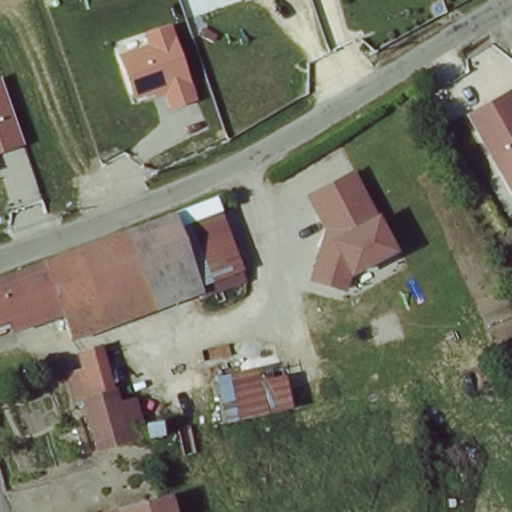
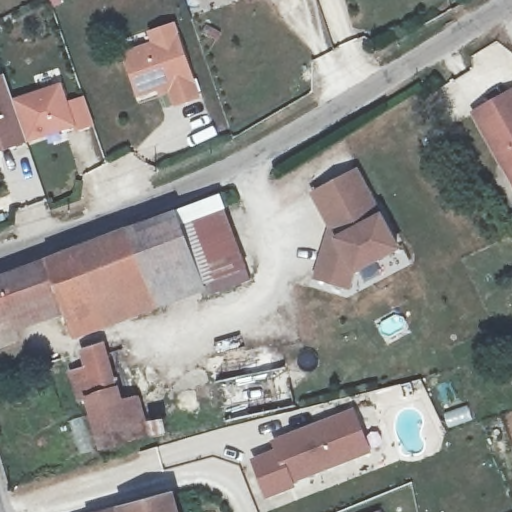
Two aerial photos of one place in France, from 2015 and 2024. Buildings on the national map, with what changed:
unchanged [(172,110),(167,90),(136,101),(119,52),(149,41),(145,31),(174,21),(203,96),(172,110)]
unchanged [(12,100),(26,144),(0,152),(0,78),(3,77),(12,100)]
new [(12,100),(56,86),(62,103),(81,99),(88,125),(26,144),(12,100)]
unchanged [(512,98),(512,190),(467,110),(506,86),(512,98)]
unchanged [(400,247),(357,270),(349,293),(315,282),(331,233),(311,192),(359,168),(400,247)]
unchanged [(213,193),(242,257),(148,303),(118,235),(213,193)]
unchanged [(113,227),(118,235),(148,303),(99,326),(85,295),(50,310),(44,297),(32,264),(113,227)]
unchanged [(32,264),(44,297),(0,317),(0,278),(32,264)]
unchanged [(95,451),(70,371),(88,364),(82,348),(106,340),(123,397),(137,394),(150,435),(95,451)]
unchanged [(218,380),(286,362),(296,411),(229,427),(218,380)]
new [(251,459),(274,450),(271,440),(354,408),(371,454),(294,484),(296,490),(267,500),(251,459)]
unchanged [(128,508),(145,504),(160,501),(165,500),(171,512),(114,512),(128,508)]
new [(379,511),(379,512),(376,512),(379,511)]

